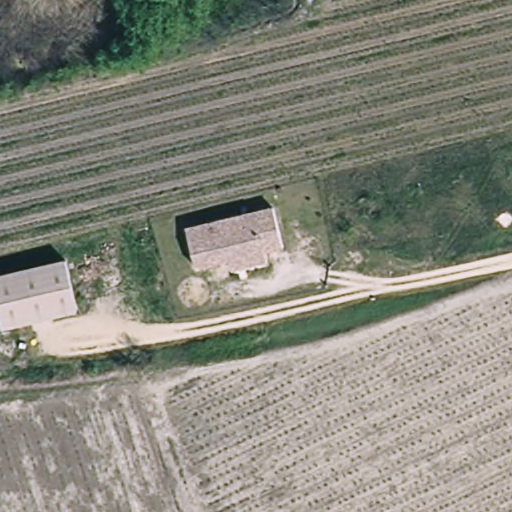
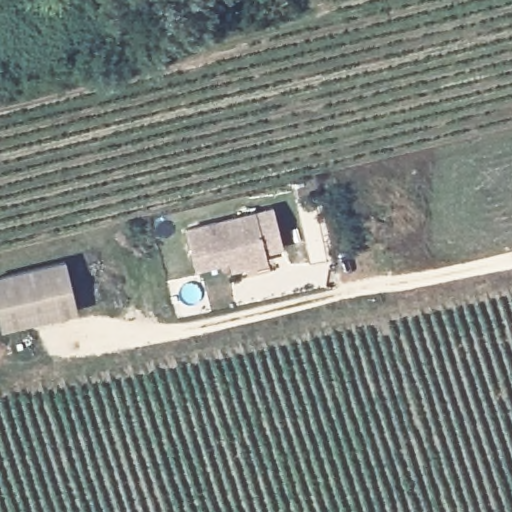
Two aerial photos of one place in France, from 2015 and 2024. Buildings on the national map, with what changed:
unchanged [(232,266),(230,256),(196,263),(188,223),(276,204),(284,245),(264,249),(266,259),(232,266)]
unchanged [(74,306),(0,322),(0,272),(64,258),(74,306)]

